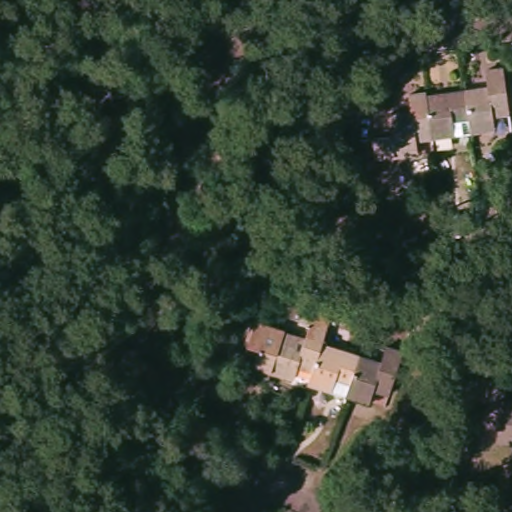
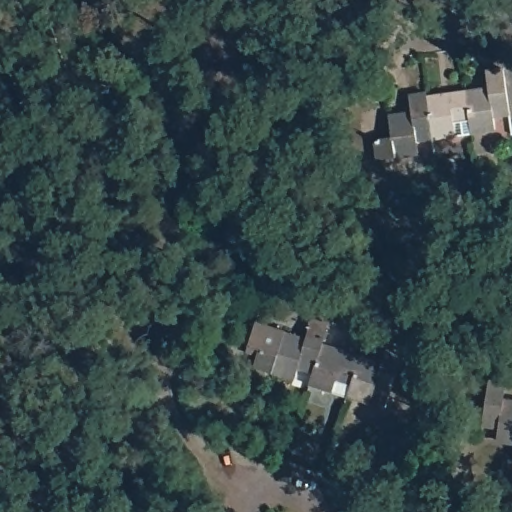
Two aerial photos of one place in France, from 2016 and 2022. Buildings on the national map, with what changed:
unchanged [(490,86),(488,68),(503,65),(510,109),(494,113),(495,125),(473,127),(471,116),(468,89),(490,86)]
unchanged [(468,89),(471,116),(456,118),(457,130),(433,134),(428,96),(468,89)]
unchanged [(412,113),(412,94),(428,92),(428,96),(433,134),(416,136),(417,153),(378,158),(376,138),(391,135),(390,116),(412,113)]
unchanged [(247,349),(257,316),(284,323),(282,330),(305,337),(316,292),(337,296),(325,342),(316,373),(298,368),(295,380),(255,369),(260,352),(247,349)]
unchanged [(386,358),(391,339),(408,344),(397,393),(378,388),(375,402),(353,397),(356,384),(364,352),(386,358)]
unchanged [(364,352),(356,384),(341,380),(338,391),(313,384),(316,373),(325,342),(364,352)]
unchanged [(508,381),(505,400),(512,402),(512,441),(495,438),(497,424),(482,422),(490,378),(508,381)]

